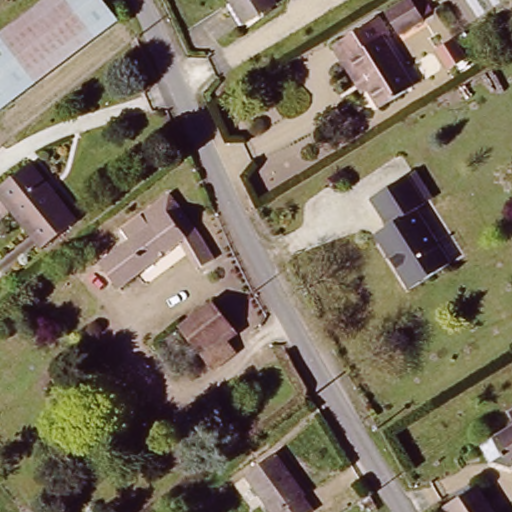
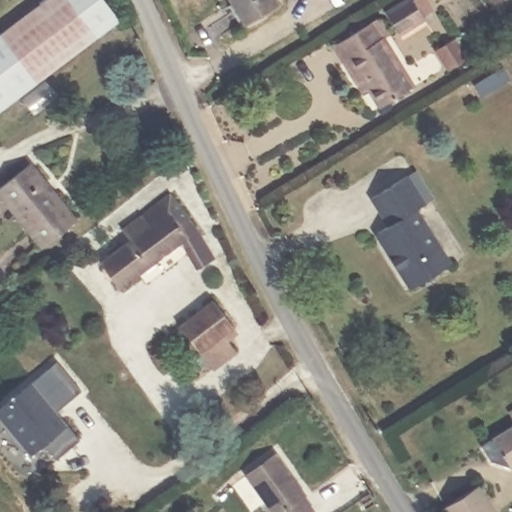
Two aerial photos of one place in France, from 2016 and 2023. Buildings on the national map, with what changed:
unchanged [(116,22),(0,108),(0,36),(48,0),(99,0),(116,22)]
unchanged [(274,7),(243,26),(228,0),(269,0),(274,7)]
unchanged [(418,7),(428,23),(402,39),(392,22),(418,7)]
unchanged [(345,66),(334,49),(380,21),(393,41),(387,44),(414,88),(381,108),(369,88),(361,93),(345,66)]
unchanged [(0,185),(19,170),(23,174),(34,165),(41,176),(45,173),(49,178),(46,181),(75,223),(42,246),(0,189),(0,185)]
unchanged [(408,283),(369,222),(384,212),(372,193),(417,167),(434,194),(418,202),(453,259),(408,283)]
unchanged [(98,260),(144,224),(138,214),(165,192),(194,228),(211,256),(199,263),(184,236),(118,284),(98,260)]
unchanged [(195,351),(176,324),(211,298),(231,325),(219,333),(231,349),(206,366),(195,351)]
new [(78,441),(55,461),(43,447),(30,457),(0,421),(0,409),(56,362),(80,391),(55,413),(78,441)]
unchanged [(509,412),(512,410),(512,417),(509,412)]
unchanged [(512,425),(512,464),(511,465),(504,452),(491,460),(482,444),(512,425)]
unchanged [(312,509),(308,512),(267,512),(243,480),(272,457),(312,509)]
unchanged [(473,487),(474,486),(491,512),(444,512),(441,507),(473,487)]

